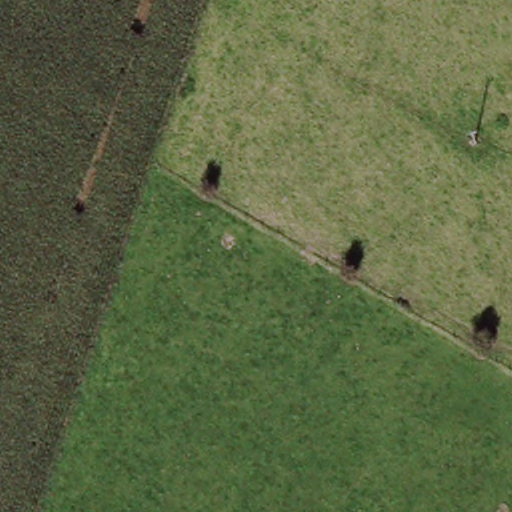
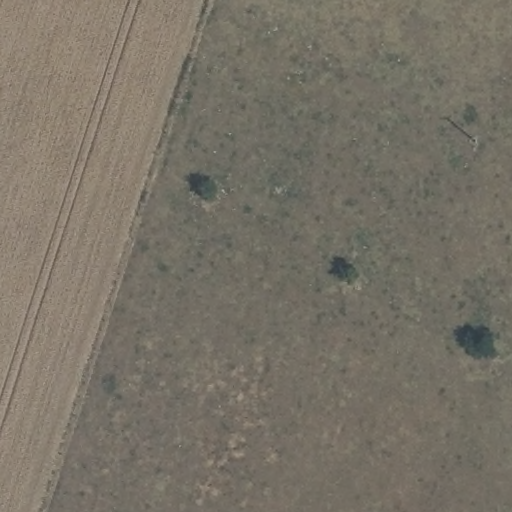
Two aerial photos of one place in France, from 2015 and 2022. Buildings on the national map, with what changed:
[]

